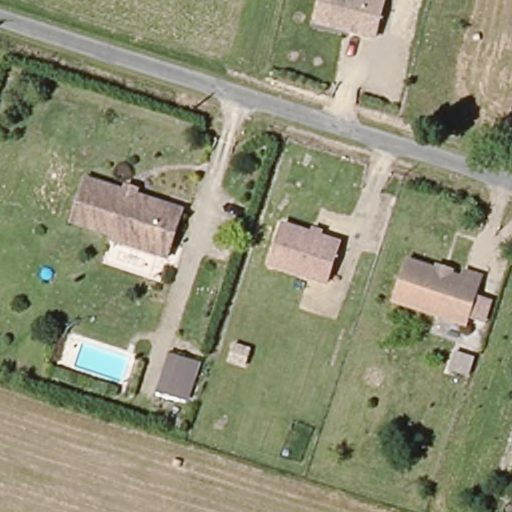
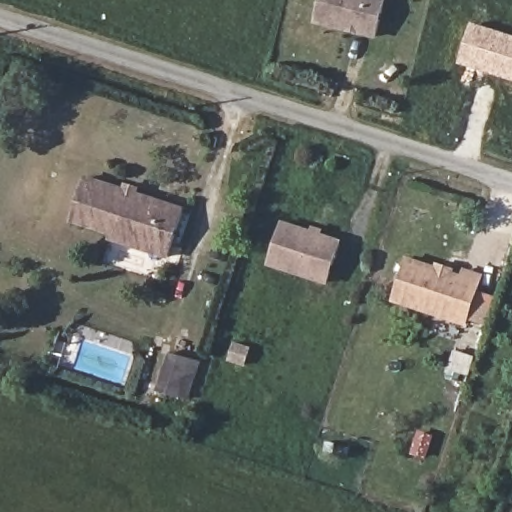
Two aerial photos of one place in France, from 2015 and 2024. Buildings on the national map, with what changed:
unchanged [(312,21),(318,0),(384,0),(375,36),(312,21)]
new [(458,62),(470,23),(512,36),(512,79),(458,62)]
unchanged [(123,188),(124,184),(135,186),(133,191),(180,205),(166,253),(107,235),(110,229),(70,217),(83,176),(123,188)]
unchanged [(327,279),(271,262),(282,222),(338,239),(327,279)]
unchanged [(409,261),(440,270),(442,275),(450,278),(452,275),(466,279),(467,274),(484,279),(468,326),(397,303),(409,261)]
unchanged [(471,377),(450,371),(455,350),(476,357),(471,377)]
unchanged [(170,354),(200,362),(190,398),(161,391),(170,354)]

